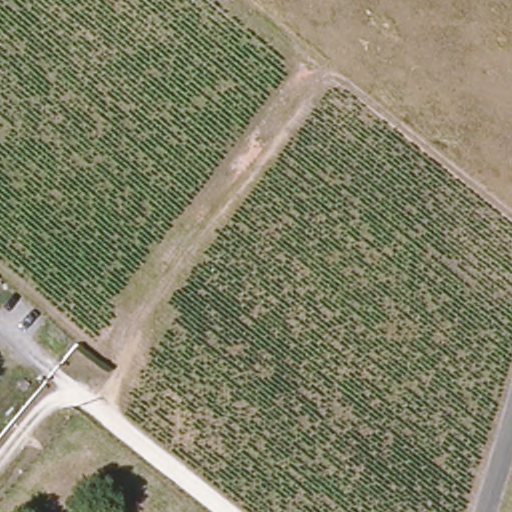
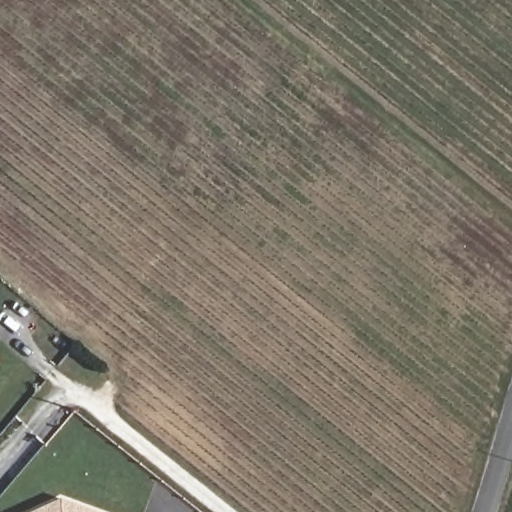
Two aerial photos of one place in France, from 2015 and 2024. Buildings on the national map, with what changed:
new [(61,497),(101,512),(30,512),(61,497)]

